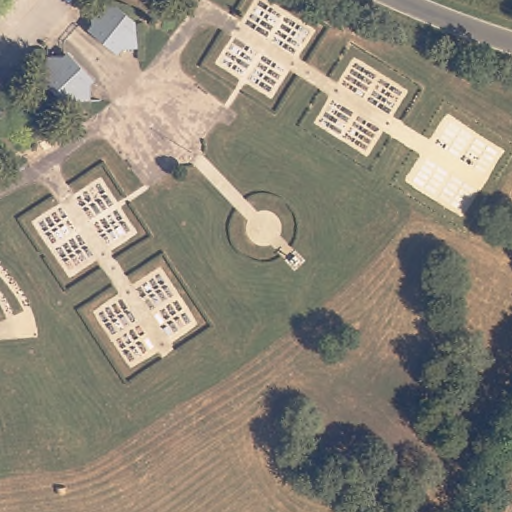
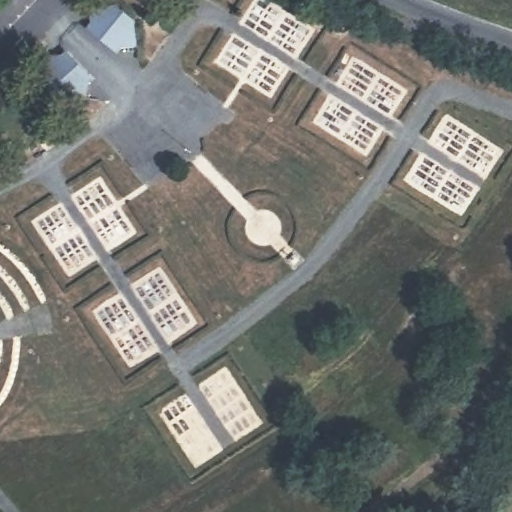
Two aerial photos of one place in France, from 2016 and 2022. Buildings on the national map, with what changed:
unchanged [(115,4),(137,24),(137,45),(122,46),(90,20),(92,4),(115,4)]
unchanged [(65,45),(95,79),(94,94),(64,95),(49,77),(47,47),(65,45)]

